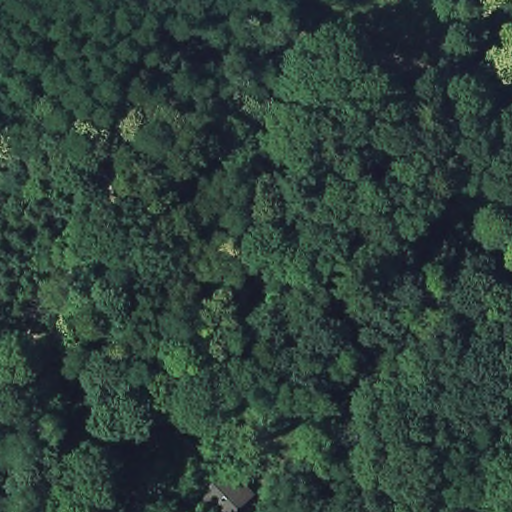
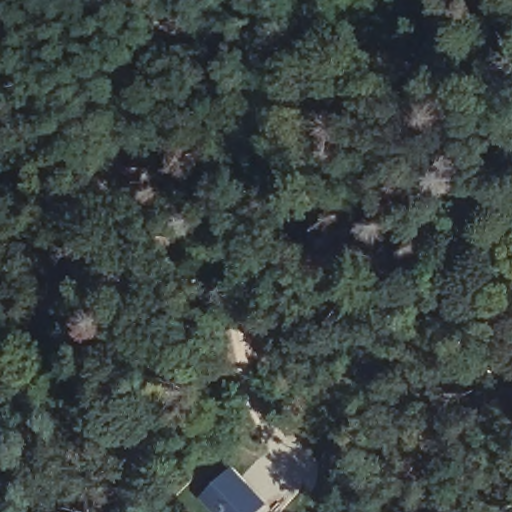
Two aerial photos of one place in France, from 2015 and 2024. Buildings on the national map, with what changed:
unchanged [(204,499),(235,468),(259,492),(240,512),(217,512),(204,499)]

